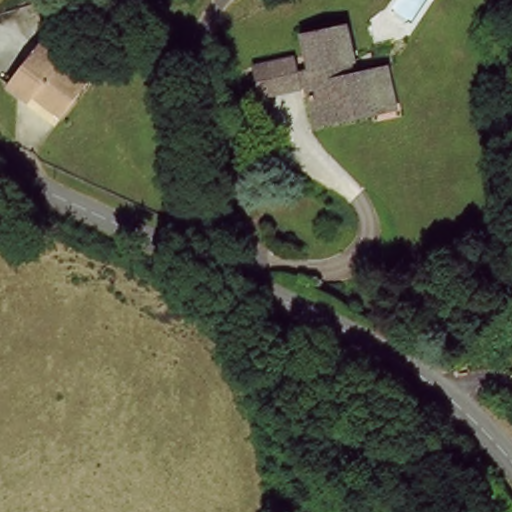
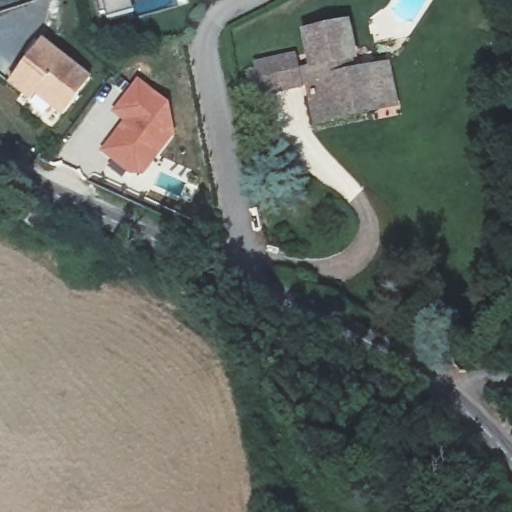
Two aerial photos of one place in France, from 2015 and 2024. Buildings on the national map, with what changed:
new [(139,2),(145,0),(177,0),(180,14),(129,26),(128,18),(117,20),(116,13),(104,15),(101,0),(139,0),(139,2)]
unchanged [(318,128),(309,88),(266,98),(260,67),(301,57),(304,71),(315,67),(308,34),(345,26),(353,60),(340,63),(344,80),(372,74),(376,92),(367,95),(371,117),(318,128)]
unchanged [(27,95),(11,83),(36,49),(42,42),(47,46),(89,77),(61,113),(57,119),(27,95)]
new [(126,123),(114,114),(139,81),(170,106),(177,135),(146,176),(131,176),(102,154),(126,123)]

